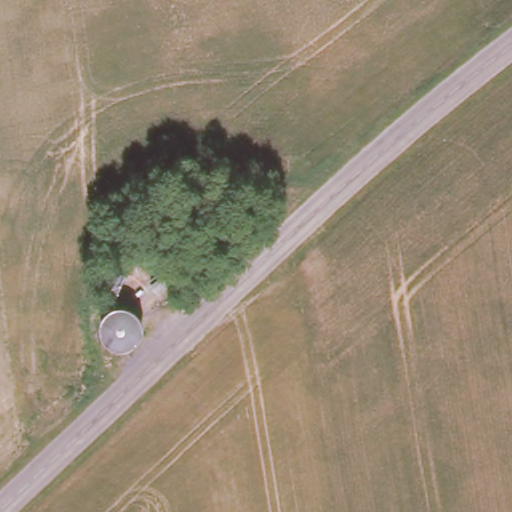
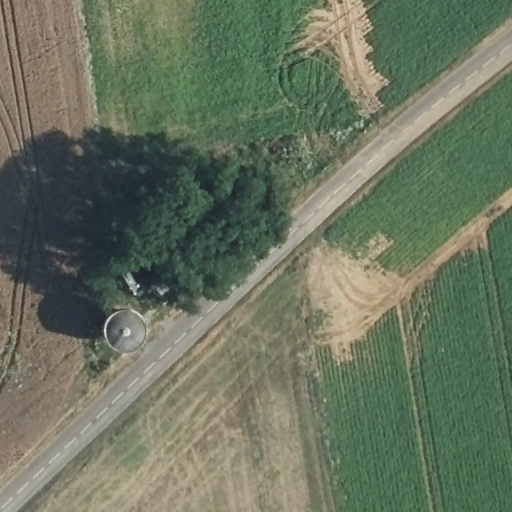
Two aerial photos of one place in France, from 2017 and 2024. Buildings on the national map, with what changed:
unchanged [(156,267),(166,278),(155,291),(145,280),(156,267)]

